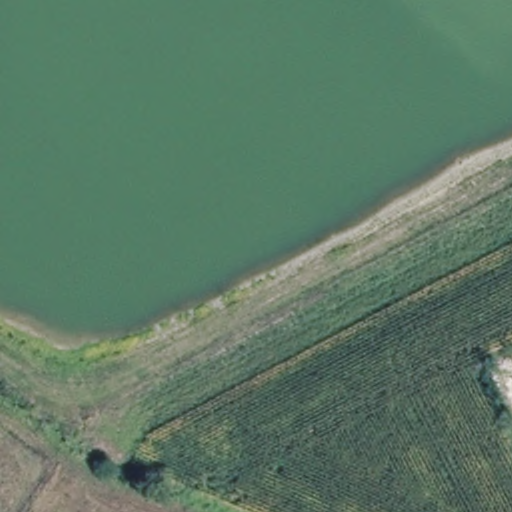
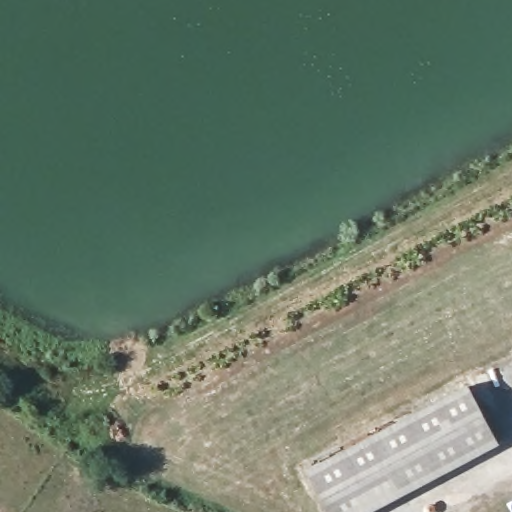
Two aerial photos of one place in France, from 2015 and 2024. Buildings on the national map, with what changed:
new [(500,445),(374,512),(327,512),(306,471),(468,385),(500,445)]

